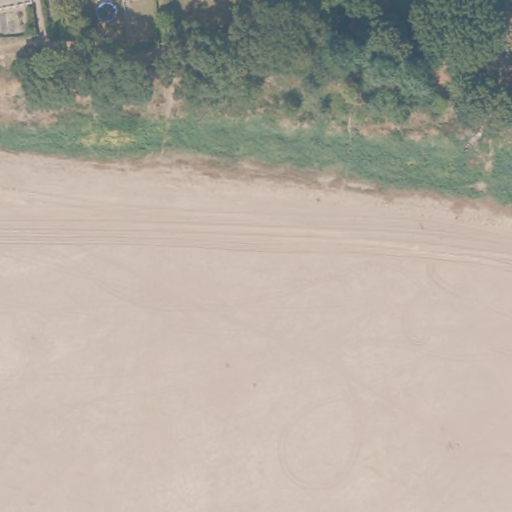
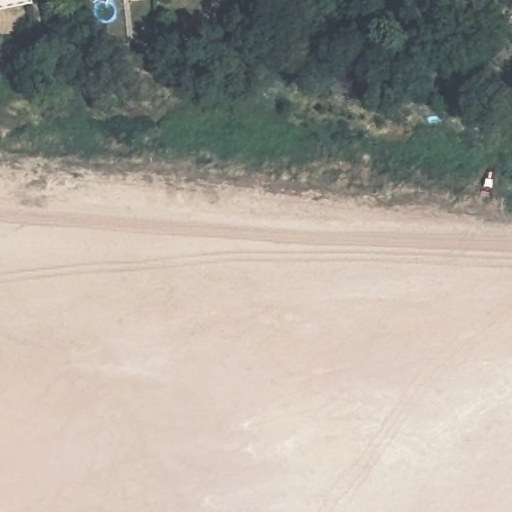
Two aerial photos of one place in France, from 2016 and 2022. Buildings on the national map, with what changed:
[]

